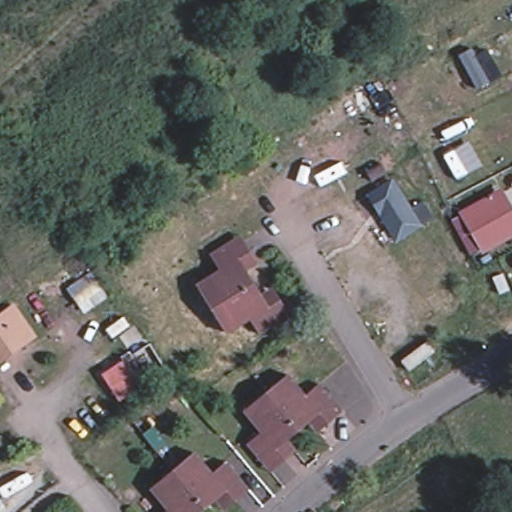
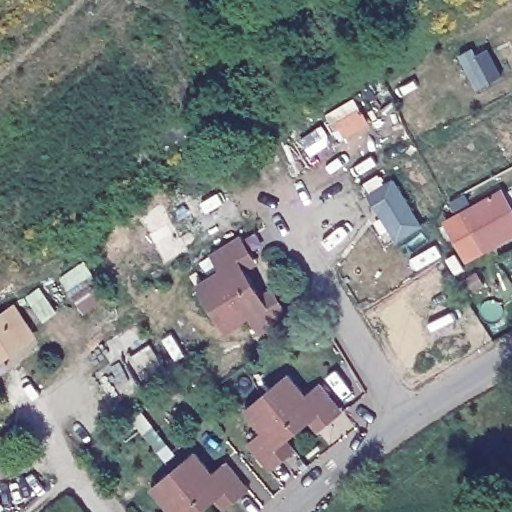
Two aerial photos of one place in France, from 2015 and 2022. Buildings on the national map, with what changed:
unchanged [(366,192),(394,177),(412,208),(422,202),(432,217),(422,223),(424,225),(396,243),(366,192)]
unchanged [(464,219),(461,212),(502,190),(512,208),(512,237),(486,253),(484,249),(471,255),(452,225),(464,219)]
unchanged [(215,267),(206,252),(236,235),(252,260),(241,268),(247,281),(207,306),(206,306),(192,282),(215,267)]
unchanged [(284,312),(254,332),(244,316),(221,329),(207,306),(247,281),(255,292),(267,286),(284,312)]
unchanged [(0,363),(0,312),(17,301),(41,337),(0,363)]
unchanged [(337,409),(313,428),(303,419),(292,427),(261,390),(262,390),(282,372),(300,393),(316,382),(337,409)]
unchanged [(266,468),(243,441),(257,429),(240,407),(261,390),(292,427),(282,437),(290,447),(266,468)]
unchanged [(200,505),(199,506),(167,467),(189,450),(207,471),(222,460),(243,487),(220,507),(210,497),(200,505)]
unchanged [(162,506),(146,486),(167,467),(199,506),(191,512),(155,512),(162,506)]

